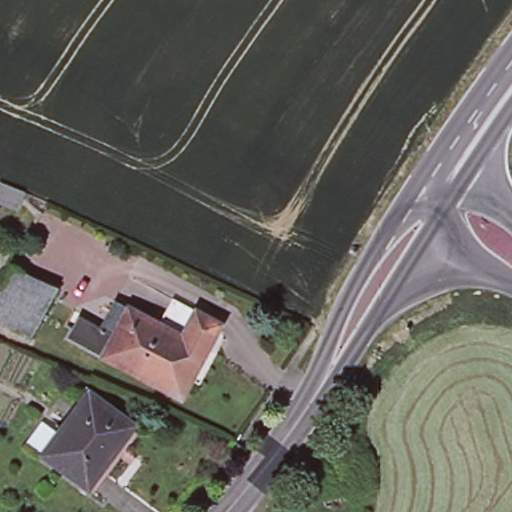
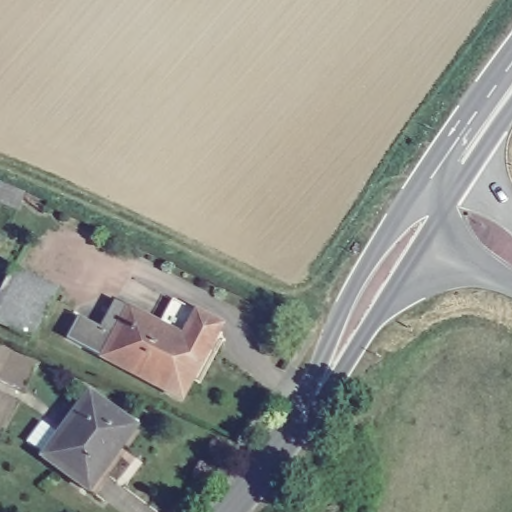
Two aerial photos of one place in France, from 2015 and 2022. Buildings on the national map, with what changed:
unchanged [(32,338),(0,323),(0,286),(8,267),(55,287),(32,338)]
unchanged [(172,299),(220,324),(207,351),(192,380),(181,400),(157,388),(183,336),(158,323),(172,299)]
unchanged [(158,323),(183,336),(157,388),(102,359),(66,340),(78,318),(100,329),(115,301),(158,323)]
unchanged [(37,453),(22,442),(37,422),(52,434),(83,392),(131,426),(137,430),(89,494),(83,490),(36,455),(37,453)]

